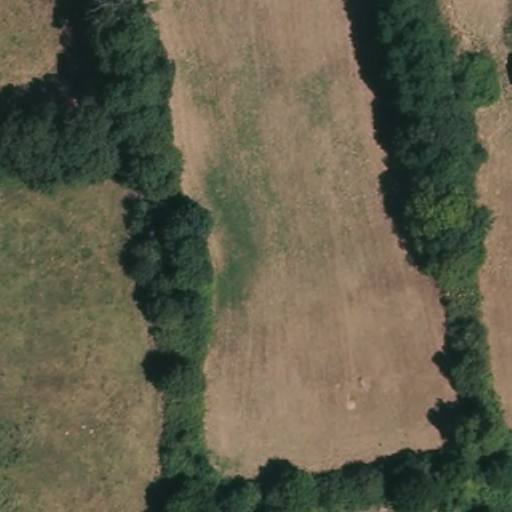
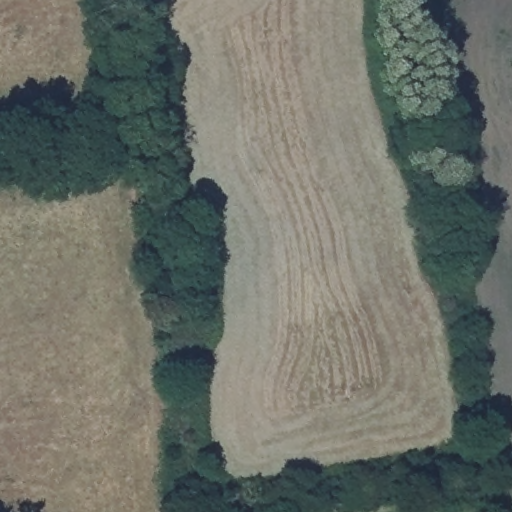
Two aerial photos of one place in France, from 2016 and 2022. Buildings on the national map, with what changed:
[]

